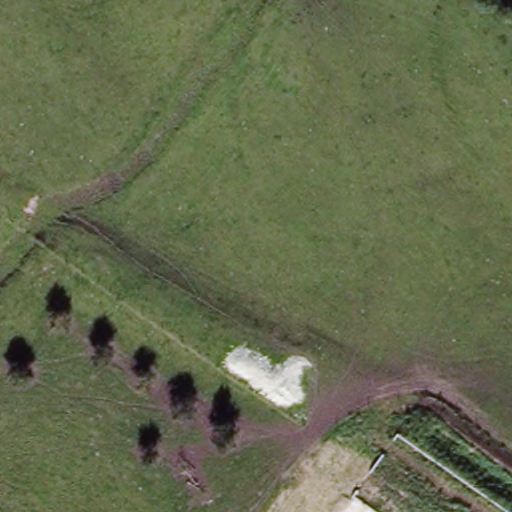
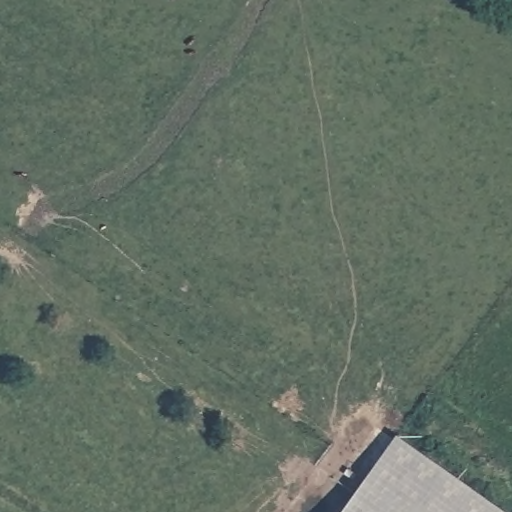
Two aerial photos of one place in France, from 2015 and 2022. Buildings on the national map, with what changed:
new [(509,512),(340,512),(396,432),(509,512)]

